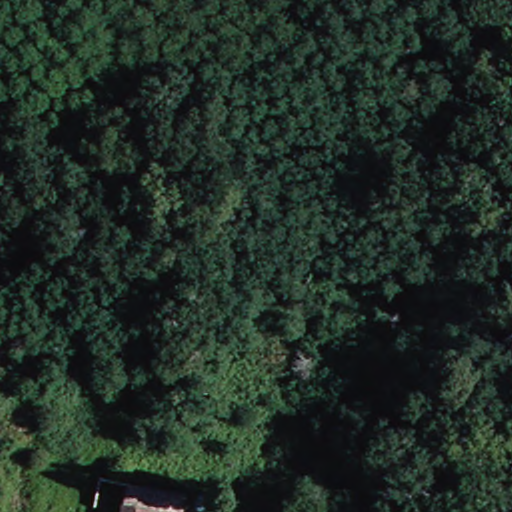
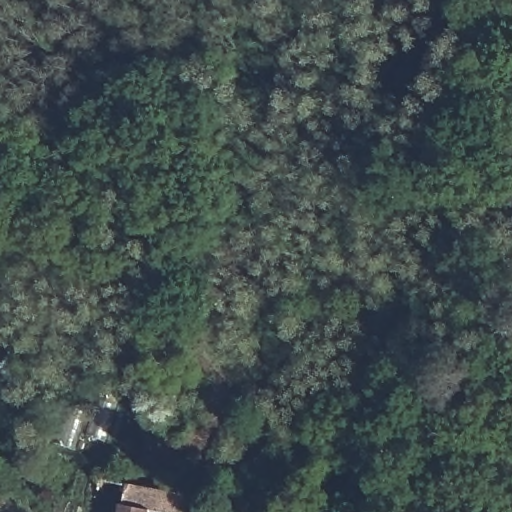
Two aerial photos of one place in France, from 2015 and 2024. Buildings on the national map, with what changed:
unchanged [(129,469),(179,485),(171,512),(98,512),(107,483),(123,487),(129,469)]

